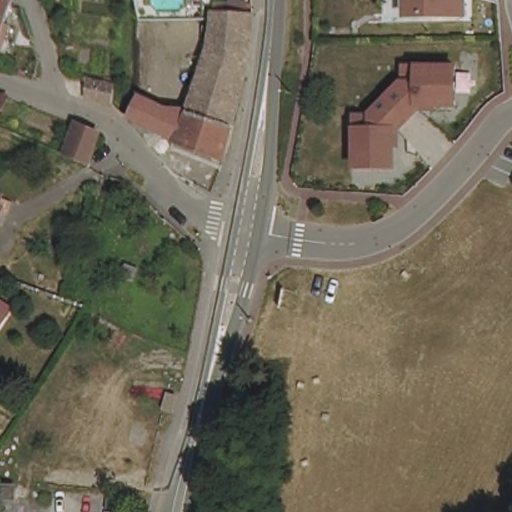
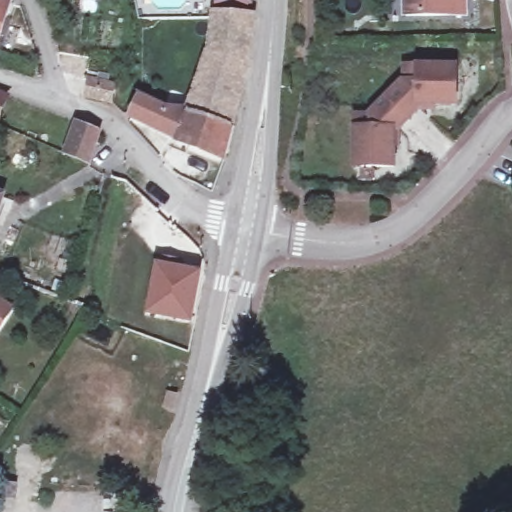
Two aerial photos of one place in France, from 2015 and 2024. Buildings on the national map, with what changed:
unchanged [(11,0),(4,19),(12,22),(7,38),(10,39),(4,54),(0,53),(0,0),(11,0)]
unchanged [(405,17),(405,0),(471,0),(470,17),(405,17)]
unchanged [(222,16),(225,9),(255,17),(255,50),(250,77),(234,156),(231,161),(137,116),(142,90),(193,113),(202,84),(212,52),(222,16)]
unchanged [(457,108),(439,107),(437,112),(420,113),(405,130),(404,148),(397,148),(397,169),(354,170),(355,127),(356,114),(371,113),(403,79),(404,66),(420,65),(459,65),(457,108)]
new [(113,103),(97,99),(86,97),(89,78),(100,81),(116,85),(113,103)]
unchanged [(9,100),(0,122),(0,97),(9,100)]
unchanged [(103,138),(87,170),(58,156),(72,125),(72,124),(103,138)]
unchanged [(2,197),(0,204),(0,196),(2,197)]
new [(147,316),(157,264),(204,274),(194,325),(147,316)]
unchanged [(13,308),(0,327),(0,300),(13,308)]
unchanged [(15,479),(15,468),(29,469),(29,497),(0,497),(0,479),(15,479)]

